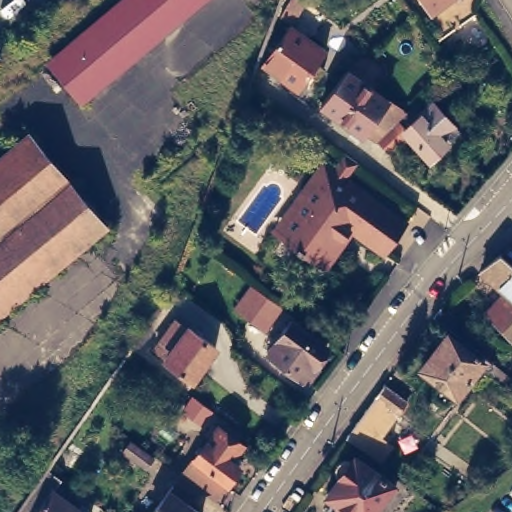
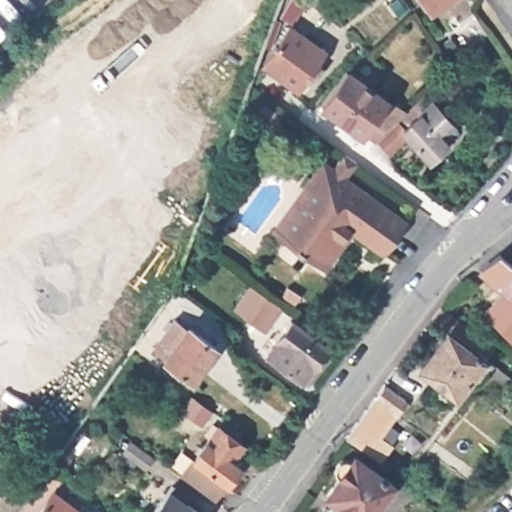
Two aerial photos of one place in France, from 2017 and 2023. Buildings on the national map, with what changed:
demolished [(53,63),(129,0),(208,0),(87,102),(53,63)]
unchanged [(291,24),(279,20),(284,0),(293,0),(299,2),(291,24)]
unchanged [(449,0),(437,9),(430,0),(459,0),(452,5),(449,0)]
unchanged [(263,64),(289,27),(324,52),(316,63),(324,69),(316,78),(309,73),(298,89),(263,64)]
unchanged [(406,108),(377,135),(364,125),(362,130),(321,100),(346,65),(406,108)]
unchanged [(429,153),(404,125),(433,98),(459,126),(429,153)]
demolished [(105,221),(0,309),(0,154),(28,130),(105,221)]
unchanged [(313,254),(303,246),(301,249),(295,245),(296,242),(283,232),(275,226),(301,189),(323,159),(404,217),(383,247),(346,221),(339,231),(344,235),(331,254),(324,262),(313,254)]
unchanged [(487,318),(507,298),(481,275),(500,260),(512,270),(512,344),(487,318)]
unchanged [(264,330),(238,310),(253,287),(267,297),(281,307),(264,330)]
unchanged [(481,375),(475,382),(469,378),(451,401),(447,399),(443,405),(437,406),(431,401),(430,396),(434,390),(414,374),(442,337),(478,363),(479,361),(428,322),(436,313),(488,353),(480,362),(487,367),(509,385),(503,393),(481,375)]
unchanged [(317,359),(306,373),(272,348),(296,315),(331,342),(318,360),(317,359)]
unchanged [(166,360),(189,328),(216,348),(192,380),(166,360)]
unchanged [(411,395),(401,409),(383,434),(395,441),(388,450),(384,455),(351,431),(389,380),(411,395)]
unchanged [(204,420),(183,404),(189,396),(210,411),(204,420)]
unchanged [(233,455),(226,465),(233,470),(228,475),(216,493),(184,469),(208,437),(233,455)]
unchanged [(359,456),(398,483),(397,484),(401,487),(397,494),(393,490),(384,501),(387,503),(381,512),(339,512),(344,505),(331,495),(344,478),(341,475),(339,471),(340,467),(341,464),(344,461),(348,460),(352,460),(356,461),(359,456)]
unchanged [(66,486),(58,497),(71,507),(75,501),(90,512),(31,512),(54,477),(66,486)]
unchanged [(169,490),(199,512),(153,512),(169,490)]

